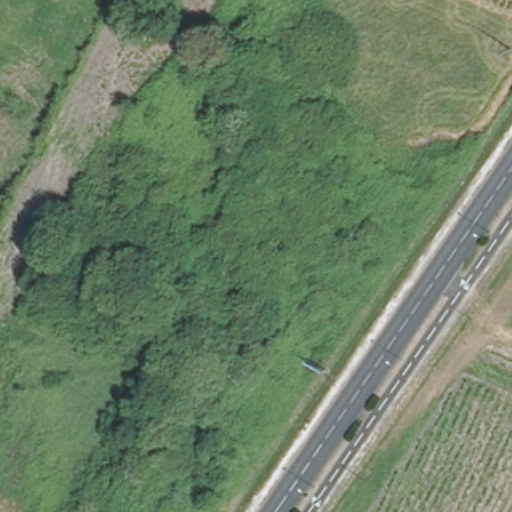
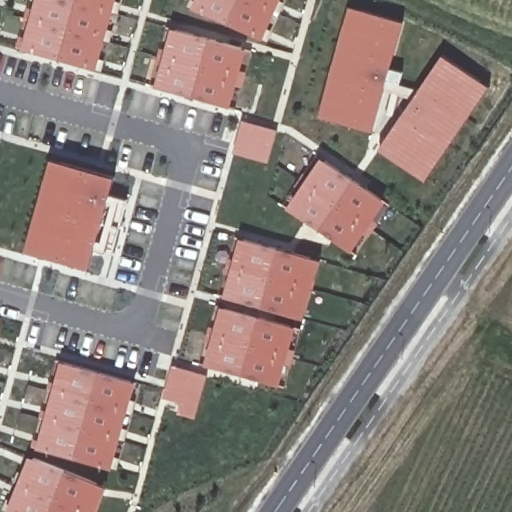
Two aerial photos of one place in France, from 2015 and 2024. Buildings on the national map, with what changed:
new [(90,70),(14,47),(27,0),(108,0),(90,70)]
new [(255,39),(187,7),(190,0),(272,0),(255,39)]
new [(401,23),(371,131),(314,117),(342,6),(401,23)]
new [(239,49),(224,105),(150,85),(164,27),(239,49)]
new [(483,89),(421,179),(375,147),(436,54),(483,89)]
new [(275,132),(268,161),(231,151),(237,121),(275,132)]
new [(109,177),(84,268),(23,250),(46,160),(109,177)]
new [(378,203),(347,253),(281,206),(313,160),(378,203)]
new [(312,261),(298,321),(216,298),(232,239),(312,261)]
new [(287,326),(273,386),(199,364),(214,306),(287,326)]
new [(127,382),(102,468),(29,447),(55,362),(127,382)]
new [(204,377),(192,418),(174,414),(177,403),(160,399),(170,366),(204,377)]
new [(88,512),(1,512),(22,458),(97,487),(88,512)]

